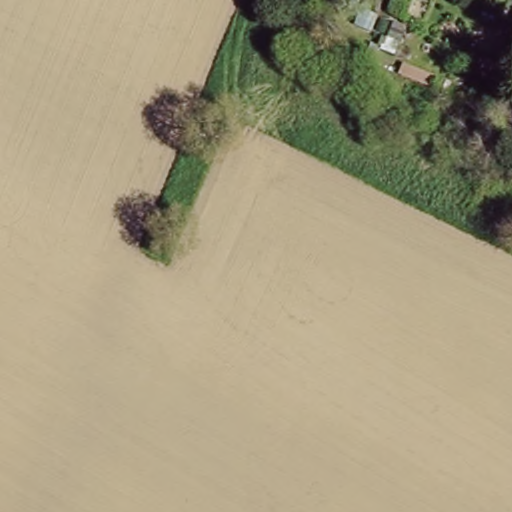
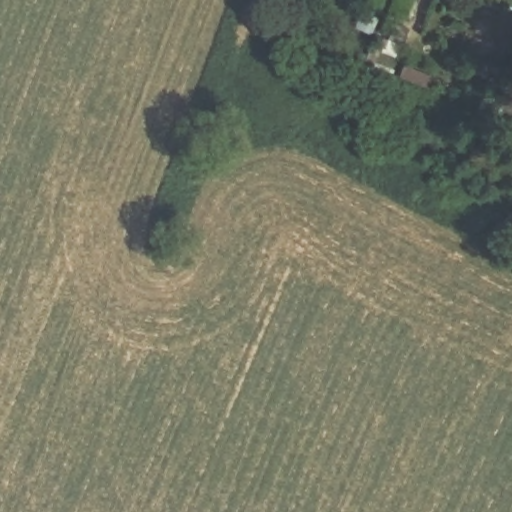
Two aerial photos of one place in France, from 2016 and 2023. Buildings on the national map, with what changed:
unchanged [(389,38),(396,20),(406,24),(399,42),(389,38)]

